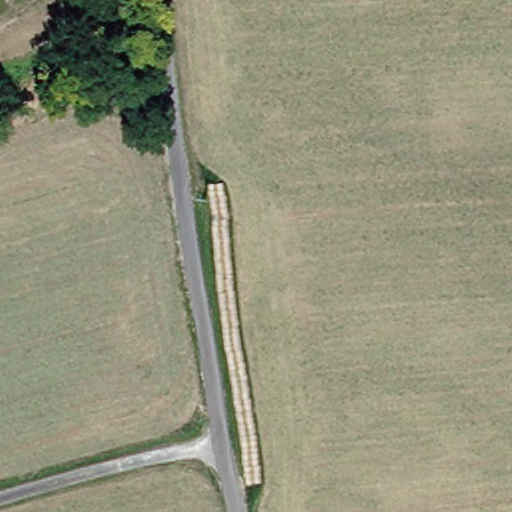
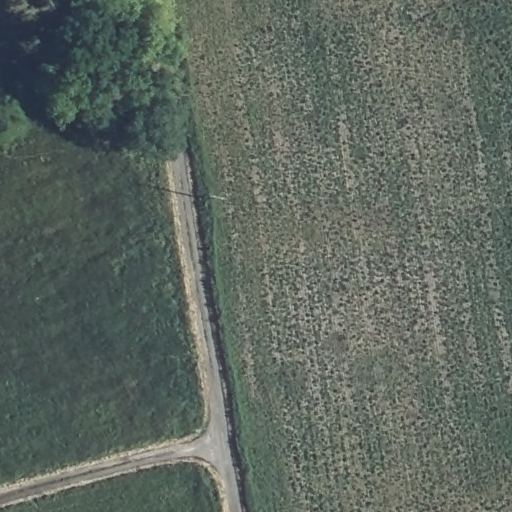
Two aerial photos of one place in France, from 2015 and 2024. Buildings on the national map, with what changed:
[]

